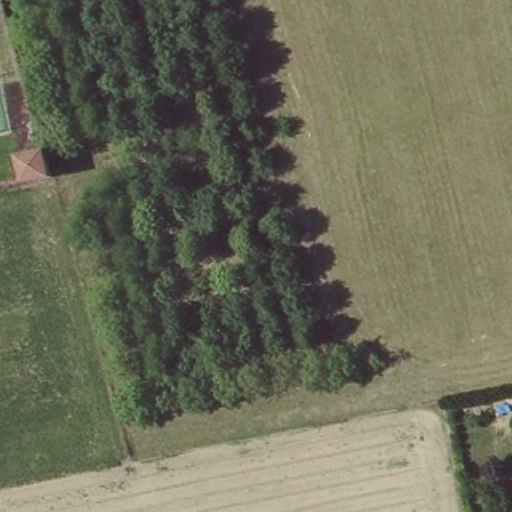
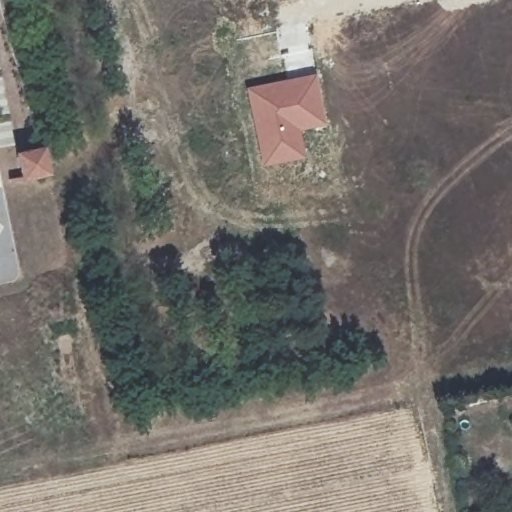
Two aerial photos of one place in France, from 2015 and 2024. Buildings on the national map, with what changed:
new [(285,71),(281,50),(276,27),(306,22),(310,45),(315,65),(285,71)]
new [(317,73),(327,126),(302,131),(307,158),(261,168),(245,87),(317,73)]
unchanged [(19,156),(43,152),(50,175),(25,179),(19,156)]

